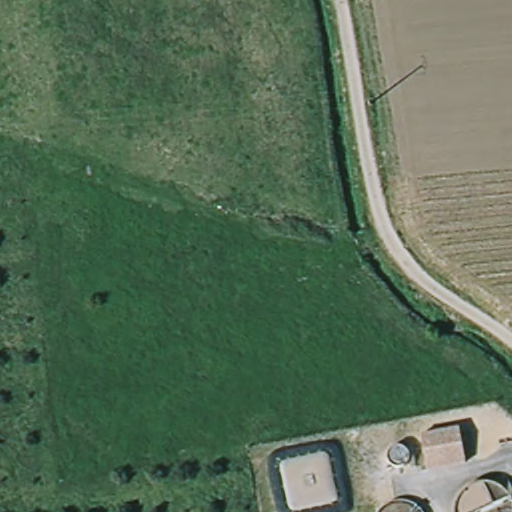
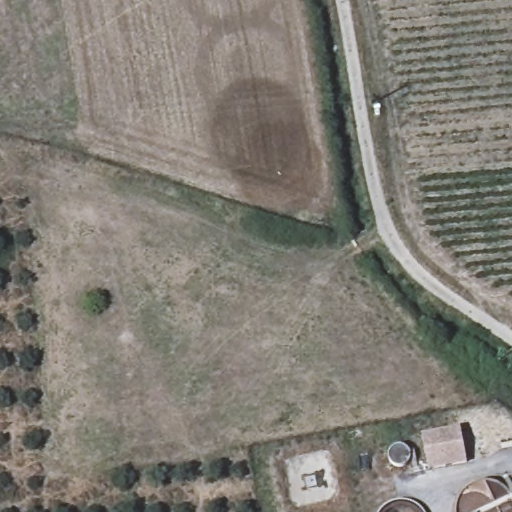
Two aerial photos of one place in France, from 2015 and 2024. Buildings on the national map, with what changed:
unchanged [(464,463),(422,471),(417,435),(456,426),(464,463)]

